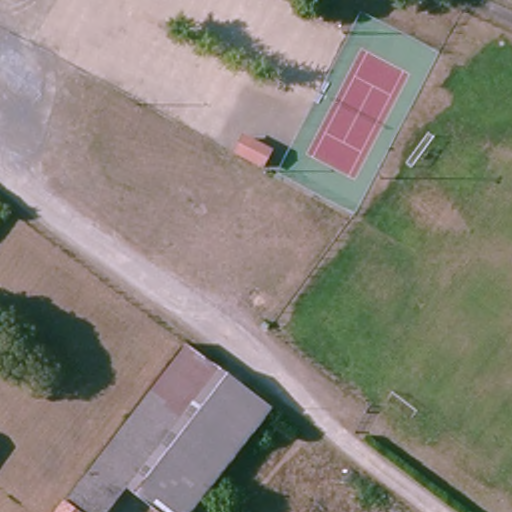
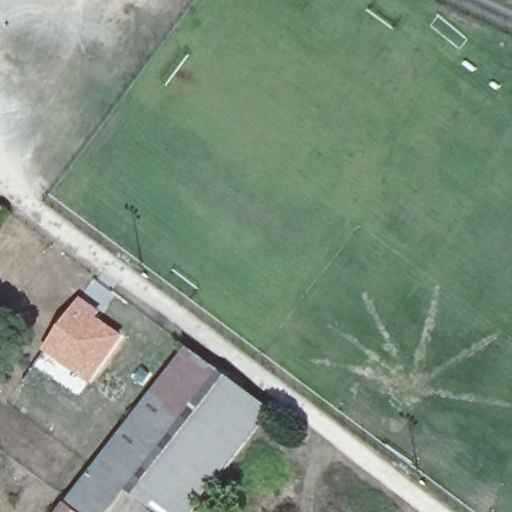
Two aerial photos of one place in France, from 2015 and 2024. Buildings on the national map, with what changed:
demolished [(212,141),(203,155),(178,139),(186,125),(212,141)]
unchanged [(270,148),(262,162),(236,146),(245,132),(270,148)]
new [(80,296),(102,312),(99,317),(123,335),(88,384),(42,351),(80,296)]
unchanged [(119,512),(94,512),(74,496),(186,350),(229,382),(137,504),(129,498),(119,512)]
unchanged [(199,512),(148,512),(137,504),(229,382),(274,415),(199,512)]
unchanged [(0,464),(0,443),(9,449),(0,464)]
unchanged [(94,512),(62,512),(74,496),(94,512)]

